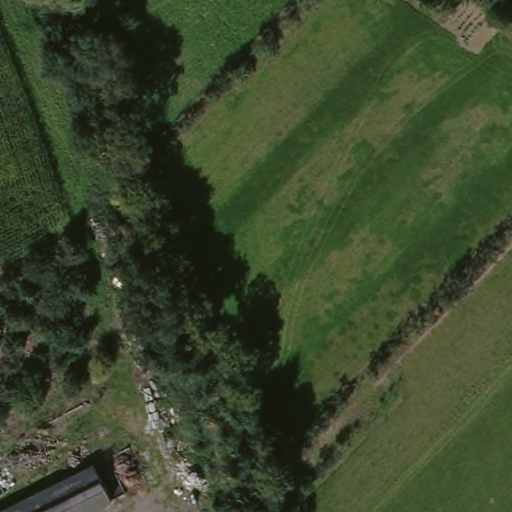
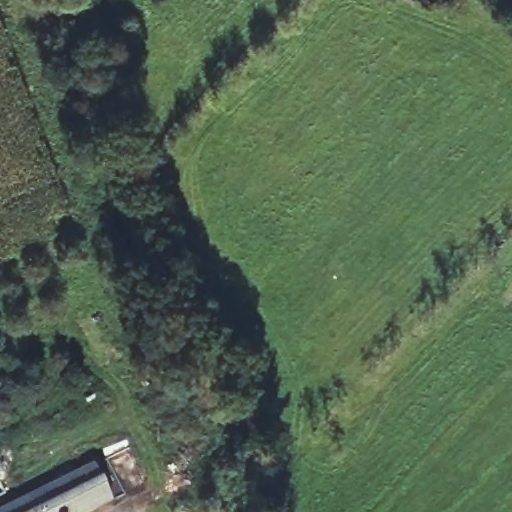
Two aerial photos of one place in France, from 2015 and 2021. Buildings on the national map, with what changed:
unchanged [(94,512),(0,512),(94,468),(111,504),(94,512)]

